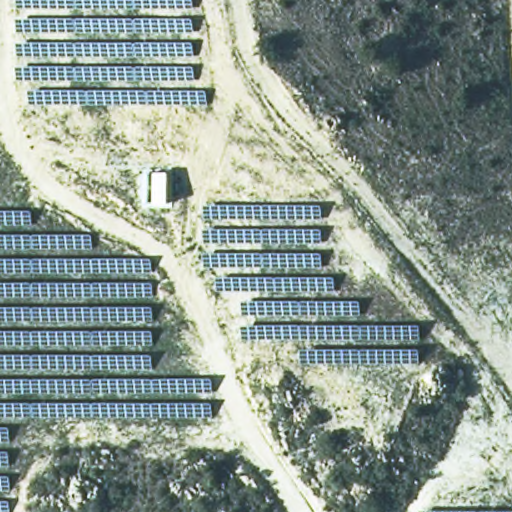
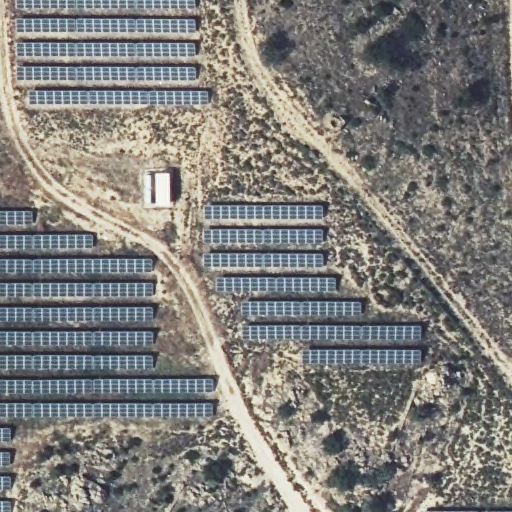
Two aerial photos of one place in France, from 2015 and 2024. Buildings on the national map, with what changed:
unchanged [(168,172),(168,205),(154,205),(154,172),(168,172)]

